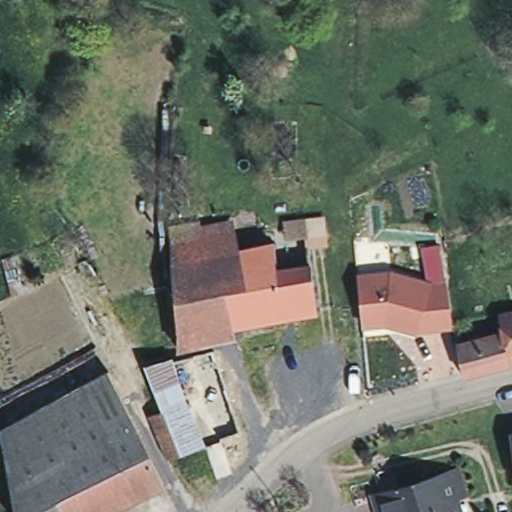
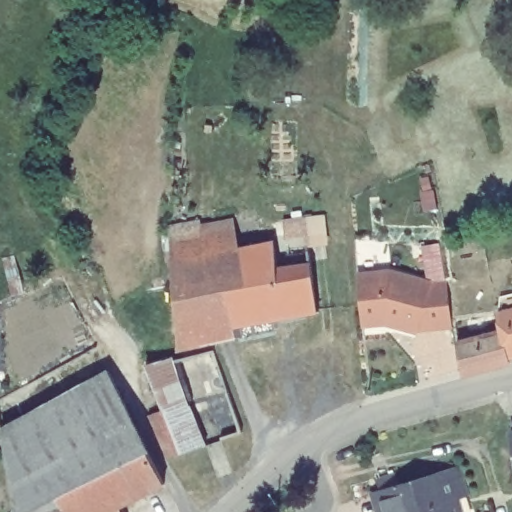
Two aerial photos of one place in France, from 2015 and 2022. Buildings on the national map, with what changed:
unchanged [(160,217),(190,212),(191,217),(222,212),(229,240),(264,234),(267,260),(277,257),(302,254),(309,302),(189,322),(192,335),(170,338),(165,288),(161,252),(160,217)]
unchanged [(360,277),(394,269),(430,284),(449,282),(452,327),(419,330),(389,322),(365,326),(360,277)]
unchanged [(512,339),(508,323),(502,326),(498,307),(512,304),(512,339)]
unchanged [(482,322),(484,330),(502,326),(508,323),(512,339),(512,350),(508,351),(510,356),(462,368),(460,355),(457,337),(467,335),(465,326),(482,322)]
unchanged [(204,340),(232,422),(214,430),(201,403),(185,345),(204,340)]
unchanged [(161,350),(195,435),(157,447),(139,405),(153,400),(135,357),(161,350)]
unchanged [(0,467),(0,415),(99,361),(116,397),(132,429),(144,452),(155,474),(121,491),(112,496),(117,506),(114,507),(116,512),(8,512),(0,467)]
unchanged [(460,463),(467,488),(455,492),(453,485),(387,506),(382,488),(378,475),(395,470),(400,482),(430,473),(460,463)]
unchanged [(455,492),(463,512),(390,512),(387,506),(453,485),(455,492)]

